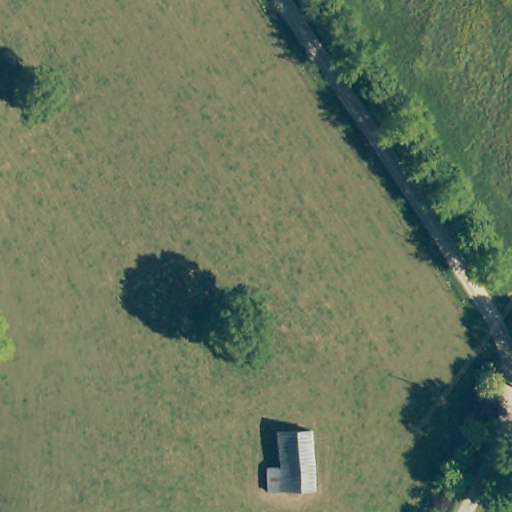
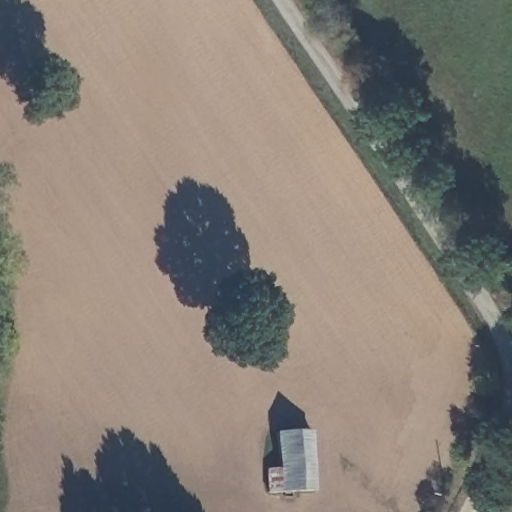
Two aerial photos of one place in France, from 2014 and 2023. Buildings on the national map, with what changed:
unchanged [(266,496),(265,473),(273,472),(272,435),(307,433),(311,493),(266,496)]

